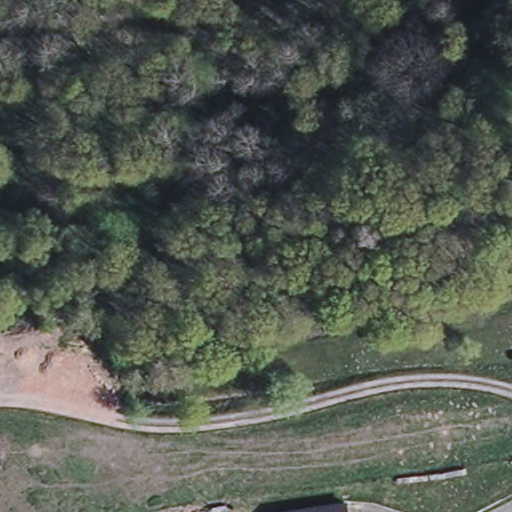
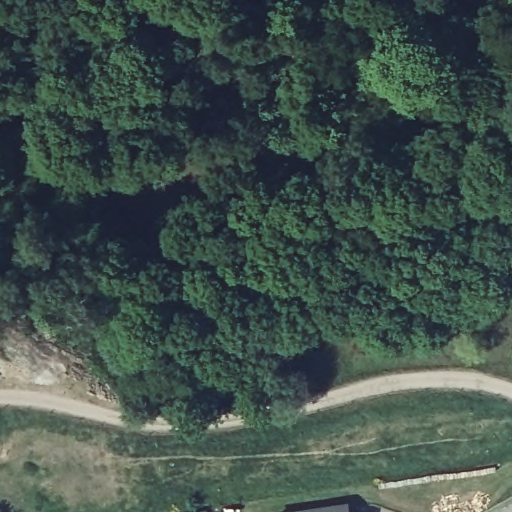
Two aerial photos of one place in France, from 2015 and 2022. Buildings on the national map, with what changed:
unchanged [(345,506),(346,512),(300,512),(345,506)]

